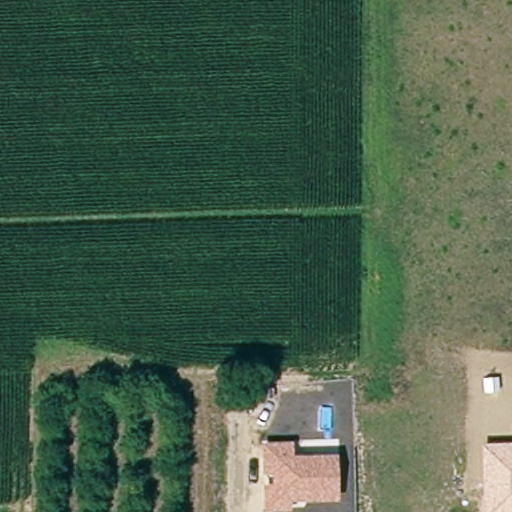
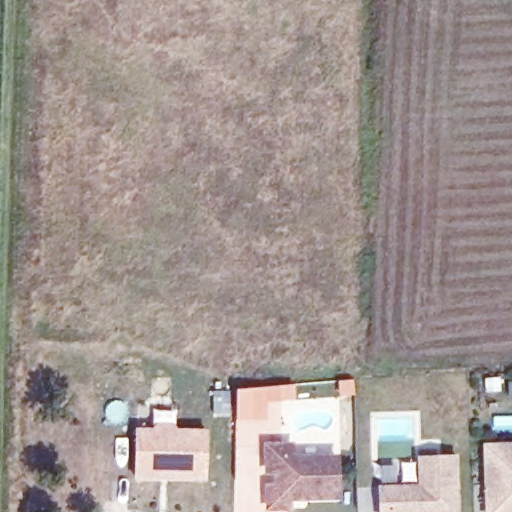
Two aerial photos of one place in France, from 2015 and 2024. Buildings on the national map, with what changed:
new [(138,430),(155,430),(159,426),(174,426),(178,431),(207,431),(207,478),(138,477),(138,430)]
unchanged [(263,512),(263,485),(273,485),(272,472),(262,472),(262,442),(294,441),(295,453),(338,454),(339,501),(291,502),(291,512),(263,512)]
unchanged [(482,443),(512,443),(512,512),(484,512),(482,443)]
new [(378,483),(417,481),(417,455),(457,452),(458,512),(377,512),(378,483)]

